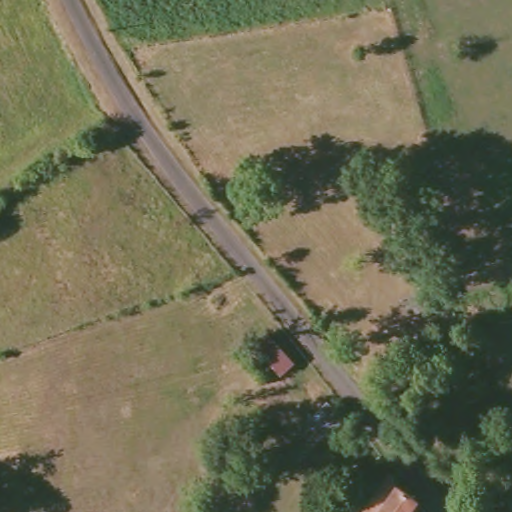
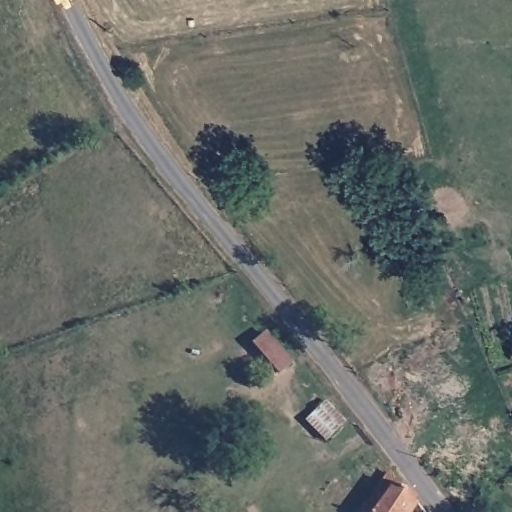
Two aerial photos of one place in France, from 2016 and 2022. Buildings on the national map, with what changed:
unchanged [(425,287),(433,300),(415,310),(407,296),(425,287)]
unchanged [(254,344),(266,335),(290,363),(279,373),(254,344)]
unchanged [(390,370),(401,385),(385,395),(375,380),(390,370)]
unchanged [(307,421),(325,402),(344,420),(325,440),(307,421)]
unchanged [(388,479),(390,479),(392,480),(394,483),(393,484),(392,486),(393,489),(413,501),(414,503),(407,512),(364,512),(388,479)]

